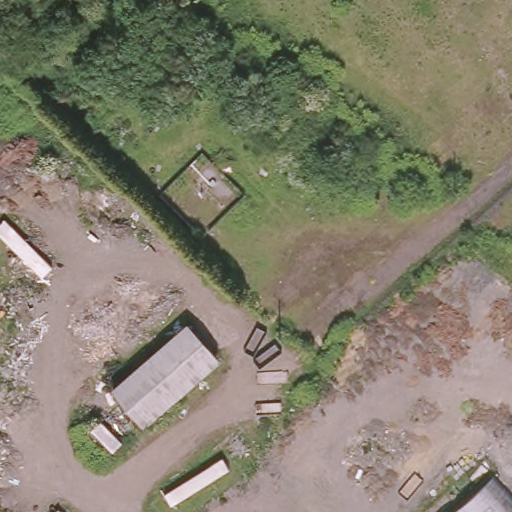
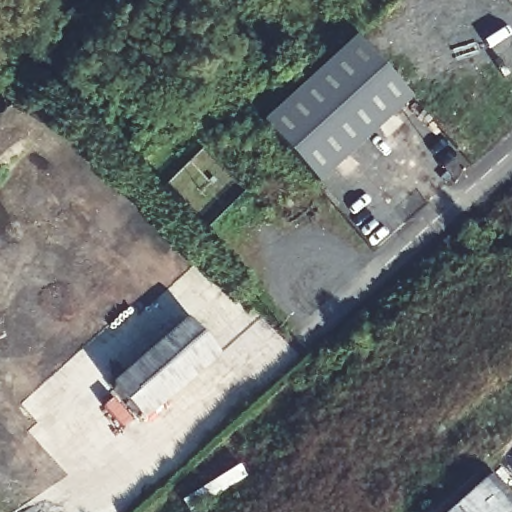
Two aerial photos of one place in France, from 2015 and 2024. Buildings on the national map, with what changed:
new [(413,103),(316,189),(265,125),(358,44),(413,103)]
unchanged [(217,359),(117,441),(96,417),(118,399),(106,384),(185,319),(217,359)]
unchanged [(512,491),(512,512),(456,512),(498,475),(512,491)]

